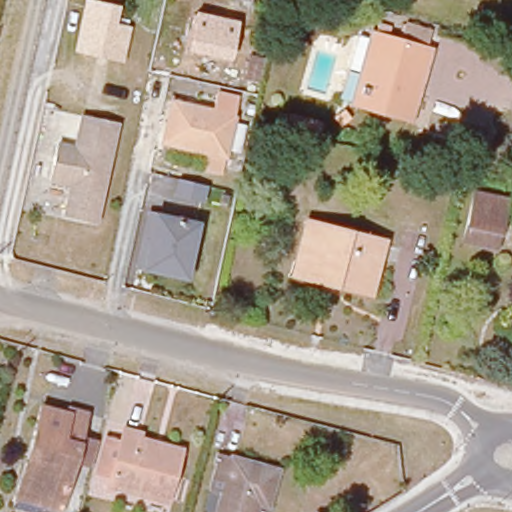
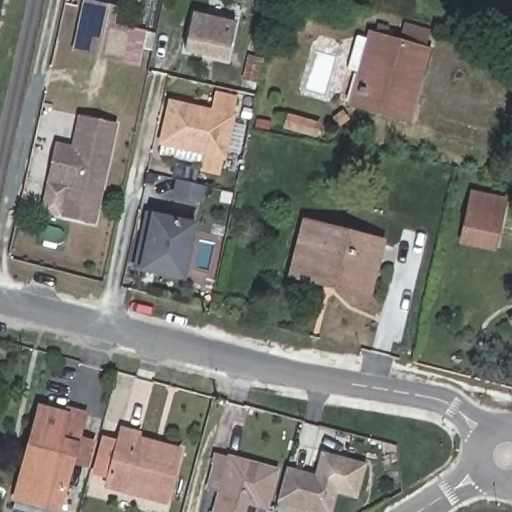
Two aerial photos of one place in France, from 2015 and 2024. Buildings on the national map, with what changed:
unchanged [(125,62),(74,52),(84,0),(97,0),(120,5),(116,23),(131,26),(125,62)]
unchanged [(230,60),(187,51),(193,11),(239,20),(230,60)]
unchanged [(352,73),(362,35),(365,28),(399,35),(403,22),(428,30),(422,51),(412,88),(396,84),(352,73)]
unchanged [(403,119),(343,104),(352,73),(396,84),(412,88),(403,119)]
unchanged [(209,111),(213,93),(232,98),(219,156),(156,144),(165,102),(209,111)]
unchanged [(116,121),(95,218),(62,211),(70,181),(49,176),(57,140),(74,144),(80,113),(116,121)]
unchanged [(467,198),(498,206),(490,238),(489,240),(486,253),(454,246),(457,234),(458,231),(467,198)]
unchanged [(199,221),(186,280),(141,270),(135,268),(147,210),(152,212),(199,221)]
unchanged [(386,243),(385,245),(372,296),(291,275),(306,221),(386,243)]
unchanged [(512,322),(511,320),(512,319),(512,322)]
unchanged [(12,502),(27,447),(37,410),(63,417),(65,411),(82,416),(58,503),(56,512),(54,512),(12,502)]
unchanged [(177,454),(163,503),(105,486),(121,430),(139,435),(137,442),(177,454)]
unchanged [(221,488),(207,484),(217,451),(229,455),(272,467),(262,503),(254,501),(251,512),(214,512),(221,488)]
new [(338,494),(333,512),(311,512),(278,503),(287,467),(317,474),(323,452),(367,464),(358,499),(338,494)]

